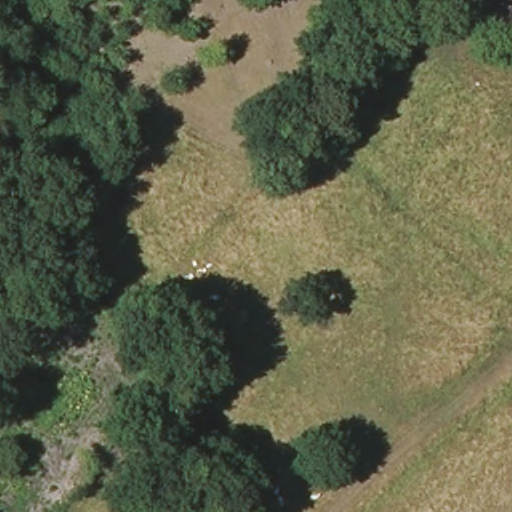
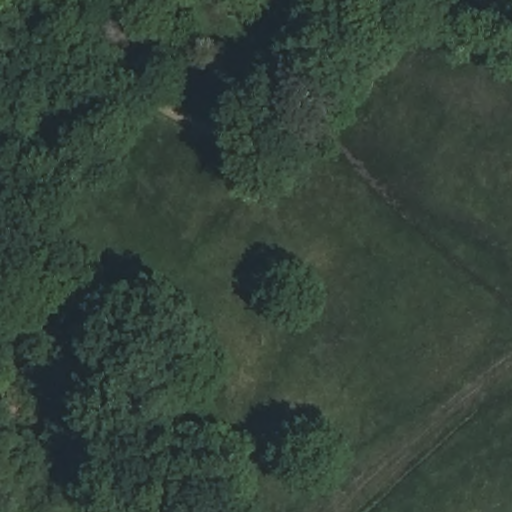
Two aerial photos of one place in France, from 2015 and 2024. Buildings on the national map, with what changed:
[]

